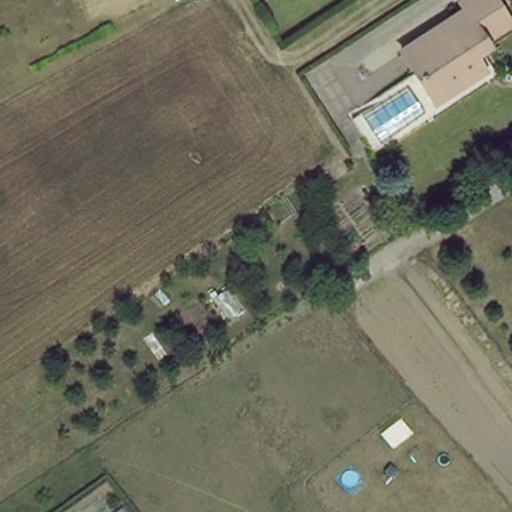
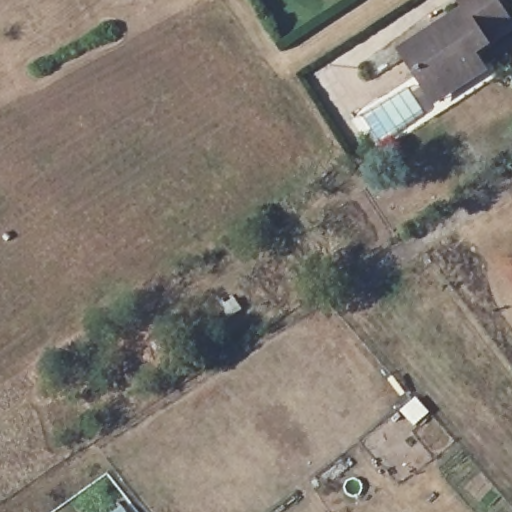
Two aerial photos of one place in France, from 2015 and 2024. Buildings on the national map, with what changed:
unchanged [(425,77),(408,54),(469,13),(462,3),(466,0),(503,0),(512,14),(512,29),(479,51),(492,70),(474,82),(442,102),(435,92),(425,77)]

